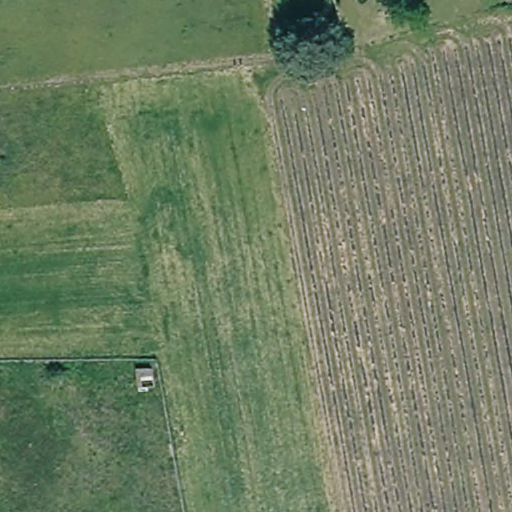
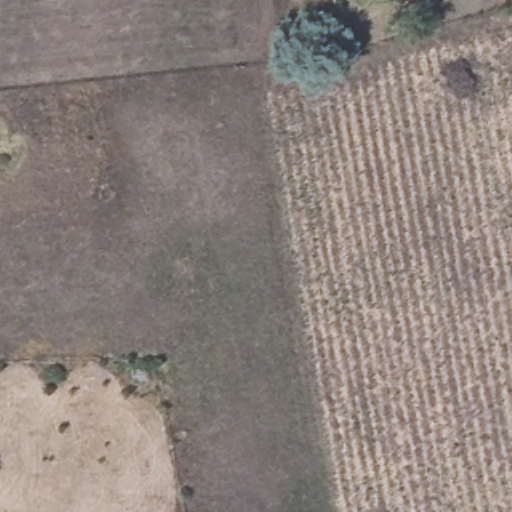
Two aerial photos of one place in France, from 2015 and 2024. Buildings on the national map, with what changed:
unchanged [(138,371),(153,368),(156,386),(141,388),(138,371)]

